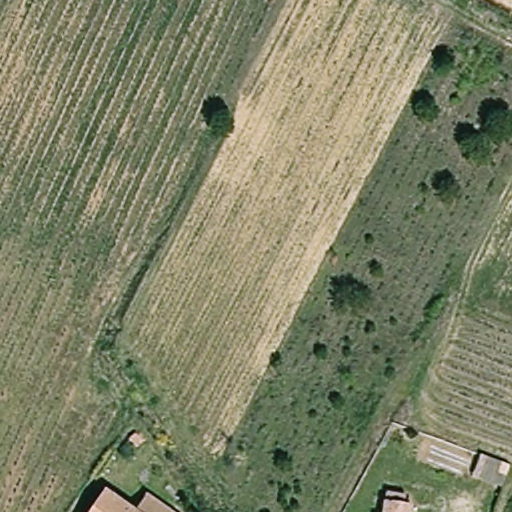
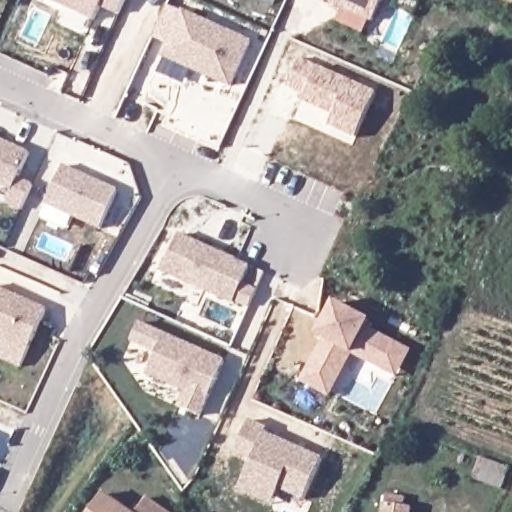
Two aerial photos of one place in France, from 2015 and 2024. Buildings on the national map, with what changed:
new [(101,6),(94,22),(47,0),(125,0),(118,15),(101,6)]
new [(326,0),(384,0),(373,23),(326,0)]
new [(183,12),(254,42),(232,90),(161,58),(168,43),(153,37),(167,6),(183,12)]
new [(320,67),(377,92),(355,140),(328,127),(332,116),(303,103),(305,98),(286,88),(300,57),(320,67)]
new [(21,212),(5,205),(11,192),(0,187),(0,139),(31,153),(20,176),(33,186),(21,212)]
new [(118,190),(101,231),(46,206),(65,165),(118,190)]
new [(252,267),(244,283),(257,291),(249,309),(235,302),(234,305),(162,273),(180,235),(252,267)]
new [(48,309),(29,353),(0,340),(0,288),(48,309)]
new [(322,338),(317,335),(335,301),(371,321),(368,326),(413,351),(397,379),(352,355),(330,398),(301,383),(322,338)]
new [(226,361),(201,417),(179,407),(184,393),(147,376),(156,355),(132,344),(141,323),(226,361)]
new [(268,429),(266,433),(323,458),(303,501),(281,489),(273,505),(239,490),(251,461),(235,454),(249,420),(268,429)]
unchanged [(107,492),(135,512),(94,512),(107,492)]
unchanged [(150,500),(164,512),(141,512),(150,500)]
unchanged [(385,506),(409,509),(408,512),(384,512),(385,506)]

